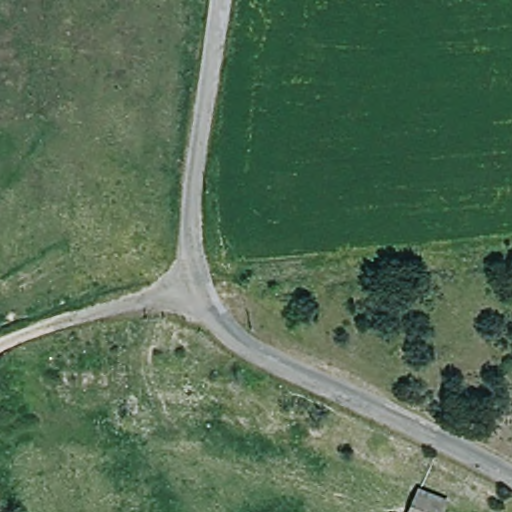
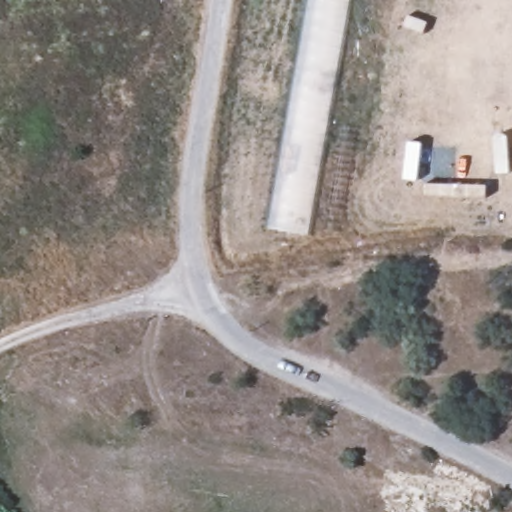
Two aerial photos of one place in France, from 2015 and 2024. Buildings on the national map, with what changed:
new [(268,229),(309,0),(350,0),(307,236),(268,229)]
new [(357,129),(338,234),(323,231),(341,126),(357,129)]
unchanged [(443,512),(410,512),(419,491),(446,504),(443,512)]

